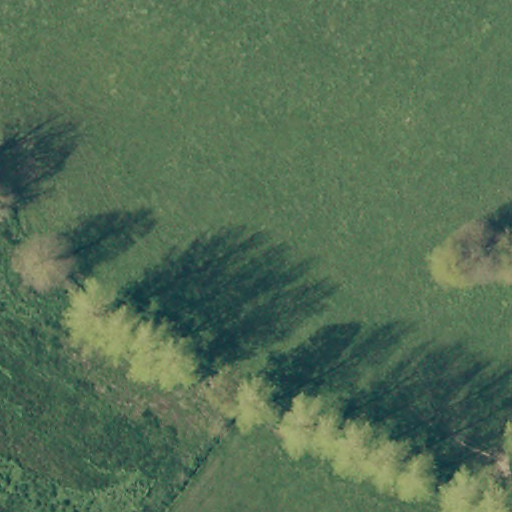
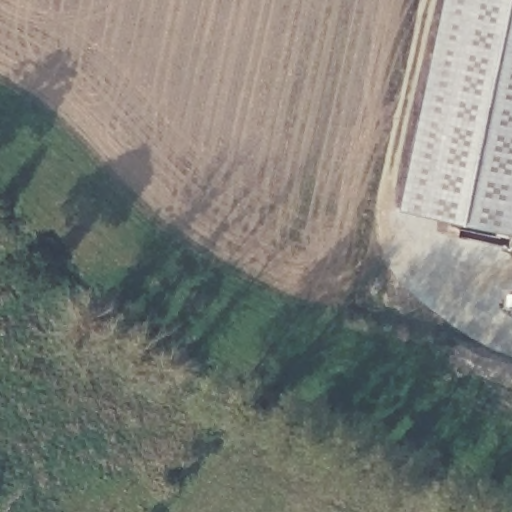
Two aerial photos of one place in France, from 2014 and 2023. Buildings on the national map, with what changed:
new [(512,0),(512,232),(405,210),(449,0),(512,0)]

